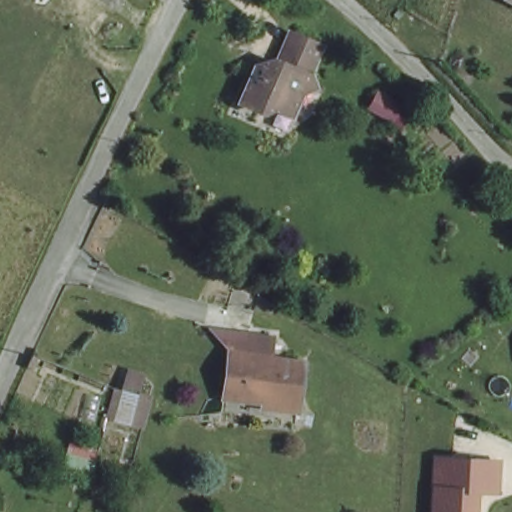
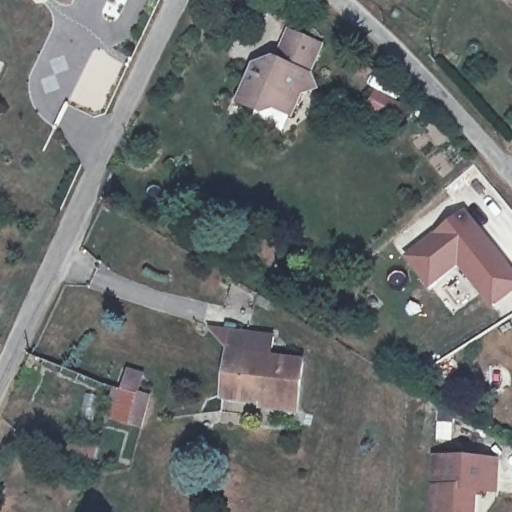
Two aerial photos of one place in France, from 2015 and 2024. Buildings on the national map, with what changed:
unchanged [(275,72),(279,62),(281,63),(289,34),(321,41),(313,72),(317,74),(321,84),(308,92),(302,114),(279,107),(269,114),(251,110),(260,74),(271,76),(275,72)]
unchanged [(372,89),(398,102),(390,123),(364,110),(372,89)]
new [(512,270),(512,292),(490,309),(457,267),(428,289),(404,257),(464,209),(512,270)]
unchanged [(276,338),(273,361),(304,367),(295,416),(257,408),(257,403),(221,397),(229,347),(230,340),(250,343),(251,333),(276,338)]
unchanged [(114,389),(118,391),(121,367),(139,377),(136,395),(150,397),(144,428),(108,422),(114,389)]
unchanged [(500,495),(479,493),(478,512),(430,512),(433,455),(501,459),(500,495)]

